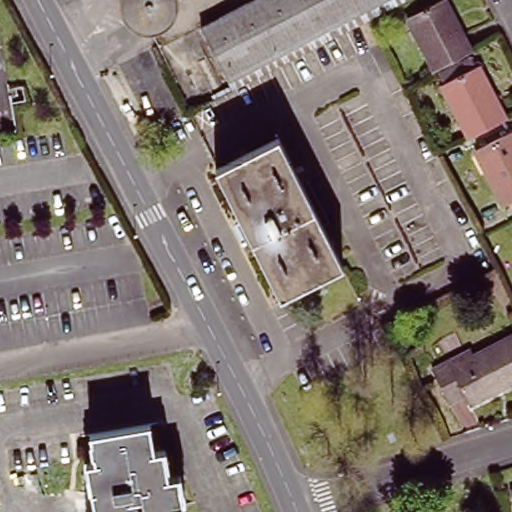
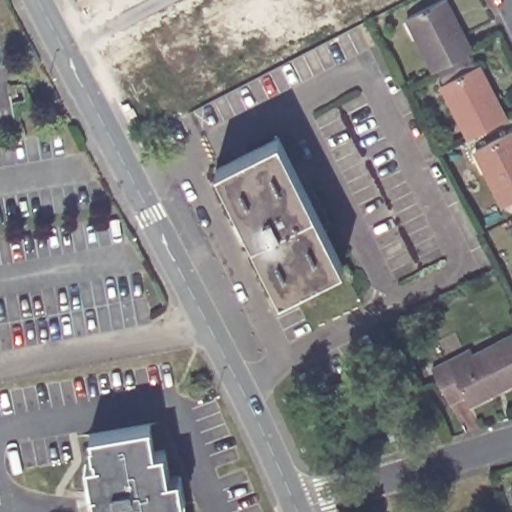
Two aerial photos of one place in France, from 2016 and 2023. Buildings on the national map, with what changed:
demolished [(201,16),(234,0),(305,0),(323,34),(233,79),(201,16)]
demolished [(323,34),(305,0),(363,0),(369,10),(323,34)]
demolished [(363,0),(388,0),(369,10),(363,0)]
unchanged [(413,12),(437,0),(453,0),(478,46),(439,66),(413,12)]
unchanged [(447,80),(484,61),(512,114),(474,134),(447,80)]
unchanged [(504,204),(476,151),(512,134),(512,200),(504,204)]
unchanged [(281,296),(216,169),(279,139),(343,265),(281,296)]
unchanged [(471,404),(465,395),(450,402),(433,370),(448,362),(451,368),(512,336),(512,383),(471,404)]
unchanged [(176,506),(176,512),(95,512),(86,463),(96,462),(92,435),(151,424),(156,451),(166,450),(171,479),(181,477),(185,505),(176,506)]
unchanged [(507,491),(512,490),(512,509),(507,491)]

